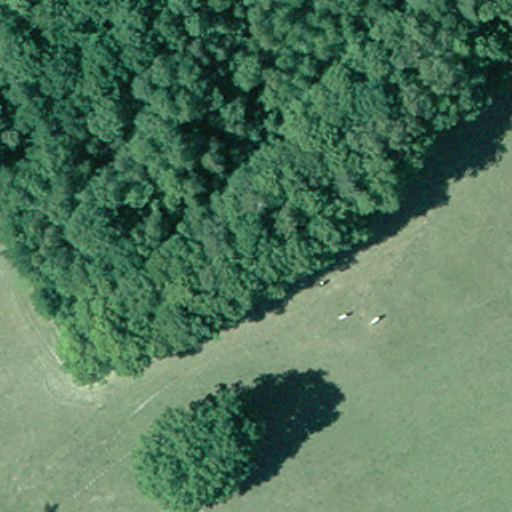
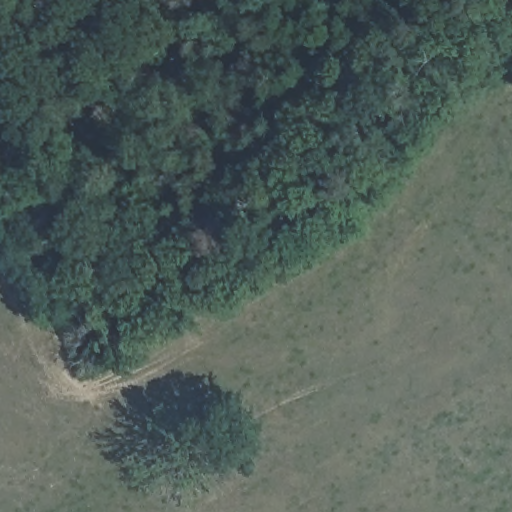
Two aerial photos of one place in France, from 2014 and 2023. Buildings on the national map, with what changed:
[]

